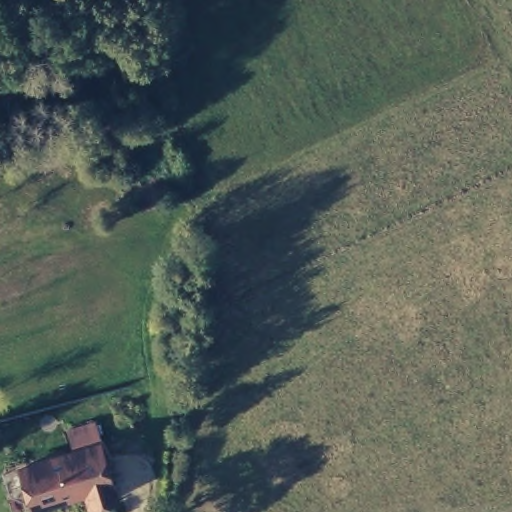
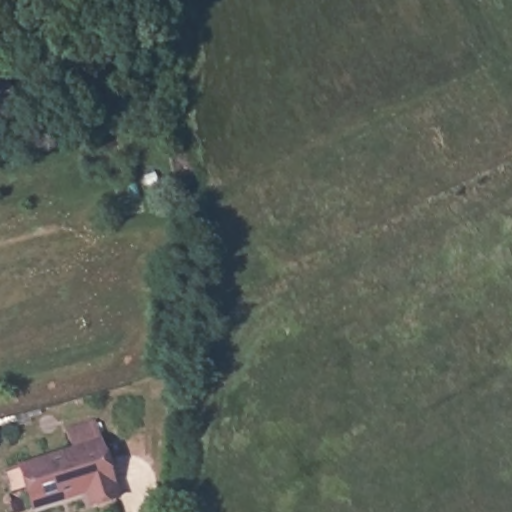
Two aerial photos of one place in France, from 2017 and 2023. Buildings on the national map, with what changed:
unchanged [(121,498),(95,506),(90,492),(37,509),(24,468),(103,443),(121,498)]

